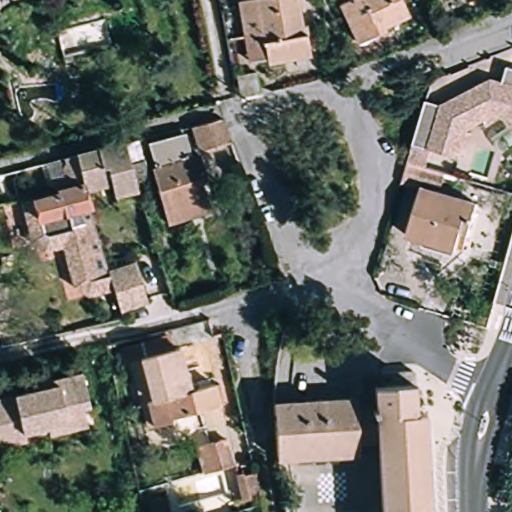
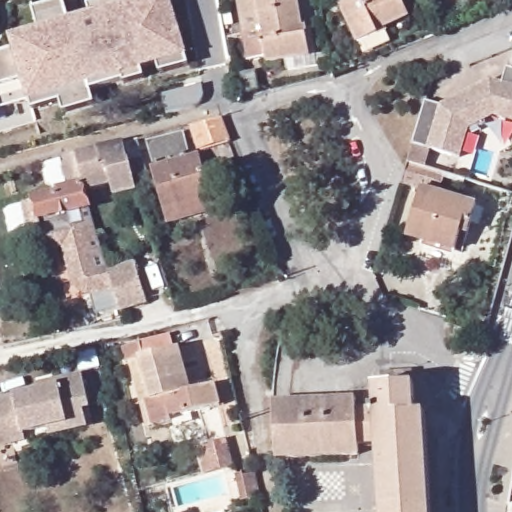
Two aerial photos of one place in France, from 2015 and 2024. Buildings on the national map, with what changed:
new [(12,48),(9,37),(38,29),(32,10),(65,1),(70,19),(89,14),(87,5),(105,0),(172,0),(190,66),(160,75),(156,64),(143,69),(146,78),(124,85),(123,82),(92,91),(96,105),(64,115),(60,103),(33,112),(28,97),(0,106),(0,52),(12,48)]
unchanged [(245,0),(296,0),(302,34),(305,34),(307,54),(267,61),(266,58),(250,60),(240,1),(245,0)]
unchanged [(413,14),(380,30),(382,33),(364,41),(346,4),(354,0),(406,0),(413,14)]
unchanged [(426,93),(440,97),(491,71),(503,75),(507,59),(512,61),(512,113),(494,107),(471,119),(470,125),(462,151),(413,137),(422,105),(426,93)]
unchanged [(259,90),(238,95),(234,76),(255,72),(257,85),(259,90)]
unchanged [(225,139),(198,147),(196,142),(193,143),(188,126),(217,119),(225,139)]
unchanged [(207,198),(210,210),(164,223),(148,167),(151,167),(146,143),(178,133),(186,158),(196,155),(200,172),(202,178),(196,181),(200,200),(207,198)]
unchanged [(84,202),(79,183),(71,155),(119,142),(132,139),(142,176),(130,179),(133,189),(84,202)]
unchanged [(84,202),(85,205),(63,211),(66,224),(89,217),(103,265),(108,284),(82,291),(69,283),(58,243),(42,247),(38,231),(25,234),(16,199),(28,195),(32,198),(51,193),(52,189),(79,183),(84,202)]
unchanged [(477,204),(469,231),(463,230),(455,251),(408,236),(421,187),(477,204)]
unchanged [(103,265),(129,258),(142,299),(115,306),(108,284),(103,265)]
unchanged [(173,342),(177,354),(184,353),(196,395),(220,388),(225,410),(174,422),(169,403),(147,409),(141,389),(154,386),(147,363),(149,362),(146,349),(173,342)]
unchanged [(75,369),(83,402),(57,407),(59,419),(14,430),(15,438),(0,441),(0,392),(50,379),(49,375),(75,369)]
unchanged [(317,406),(356,404),(357,416),(375,414),(374,391),(383,391),(383,378),(413,375),(415,418),(425,418),(430,512),(382,512),(378,445),(359,447),(360,458),(278,464),(275,408),(310,406),(317,406)]
unchanged [(205,475),(199,445),(225,437),(234,467),(205,475)]

